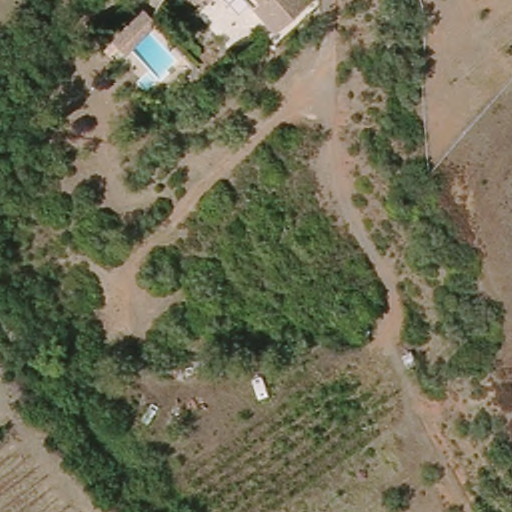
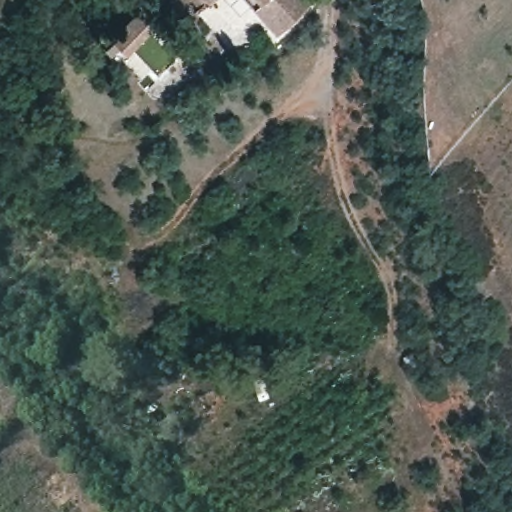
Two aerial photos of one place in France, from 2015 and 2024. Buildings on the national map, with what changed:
unchanged [(279,28),(256,0),(303,0),(279,28)]
unchanged [(110,40),(141,9),(156,24),(123,55),(110,40)]

